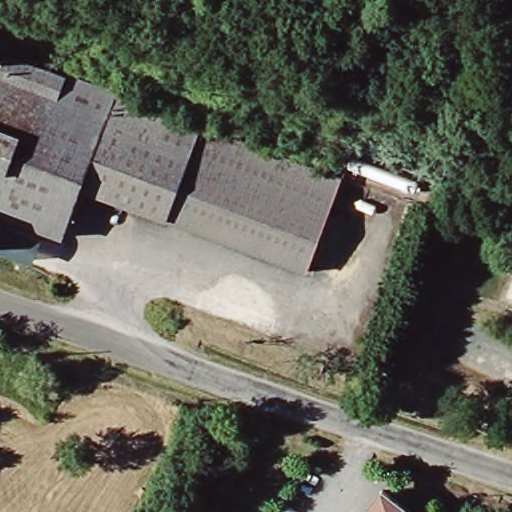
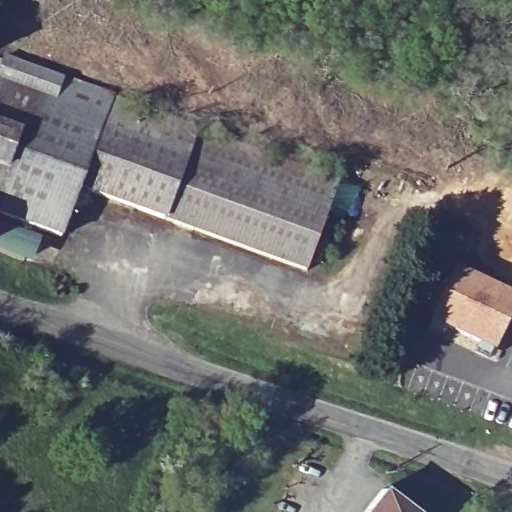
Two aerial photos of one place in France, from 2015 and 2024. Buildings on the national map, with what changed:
unchanged [(4,60),(339,184),(306,275),(79,191),(61,240),(0,218),(0,71),(4,60)]
new [(512,292),(512,317),(495,350),(431,320),(458,266),(512,292)]
demolished [(512,283),(512,304),(505,301),(512,283)]
demolished [(227,301),(231,290),(251,297),(247,308),(227,301)]
unchanged [(406,512),(367,512),(382,493),(406,512)]

